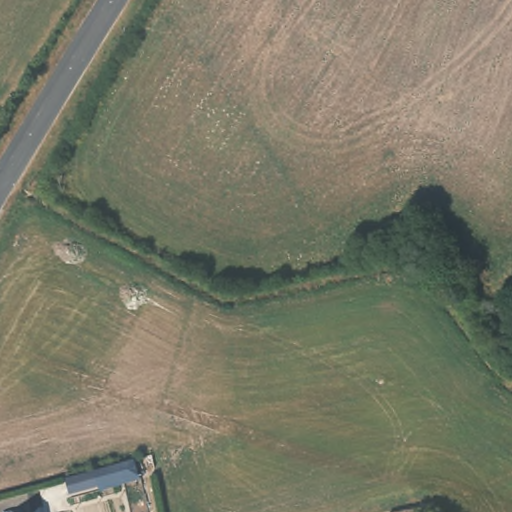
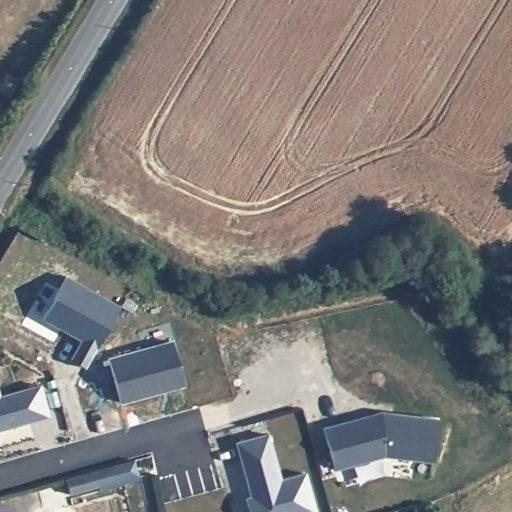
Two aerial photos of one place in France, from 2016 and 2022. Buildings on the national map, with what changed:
new [(86,368),(69,358),(78,340),(41,317),(64,275),(119,306),(86,368)]
new [(120,404),(106,357),(172,340),(185,386),(120,404)]
new [(0,393),(40,384),(49,417),(0,431),(0,393)]
new [(434,464),(385,457),(333,471),(321,426),(379,410),(439,420),(434,464)]
new [(244,496),(248,494),(232,441),(267,433),(279,476),(305,470),(316,512),(248,512),(244,496)]
new [(97,492),(95,488),(69,494),(64,477),(132,459),(139,480),(97,492)]

